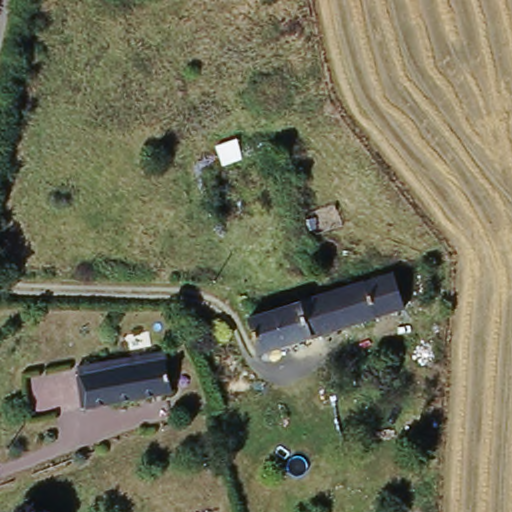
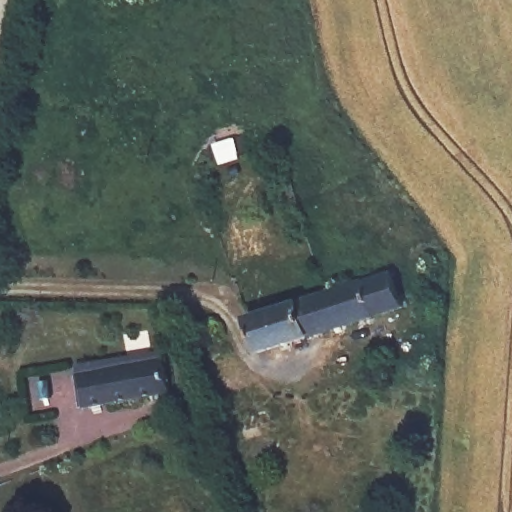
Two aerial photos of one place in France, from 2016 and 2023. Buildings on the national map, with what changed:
unchanged [(326,298),(396,276),(400,280),(410,315),(261,357),(247,322),(326,298)]
unchanged [(80,375),(170,357),(177,396),(87,414),(80,375)]

